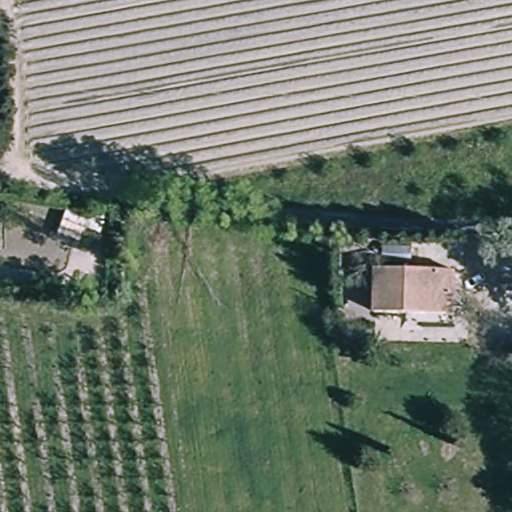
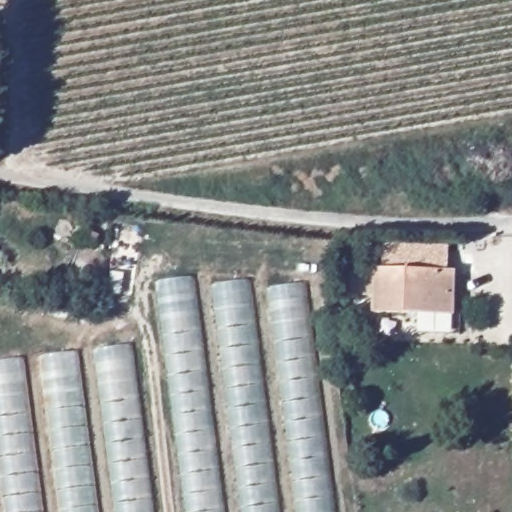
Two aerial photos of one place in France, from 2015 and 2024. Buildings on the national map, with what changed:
unchanged [(97,222),(88,247),(53,230),(65,205),(97,222)]
unchanged [(455,272),(454,314),(375,312),(375,270),(455,272)]
new [(195,279),(225,512),(187,512),(157,283),(195,279)]
new [(250,281),(280,512),(241,512),(212,287),(250,281)]
new [(305,284),(335,512),(298,512),(268,289),(305,284)]
new [(133,346),(154,512),(116,512),(95,350),(133,346)]
new [(78,353),(98,512),(60,512),(40,358),(78,353)]
new [(0,362),(23,360),(44,512),(5,512),(0,473),(0,362)]

